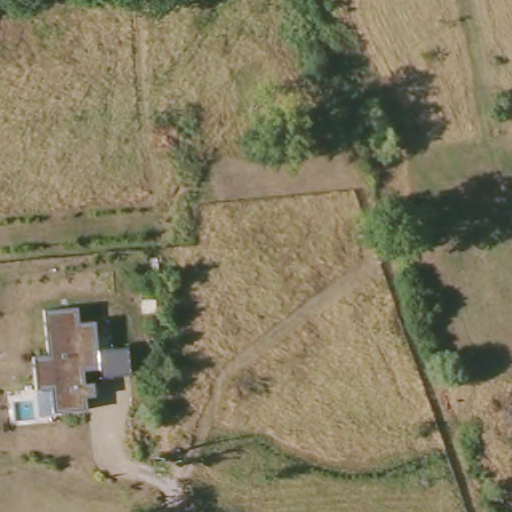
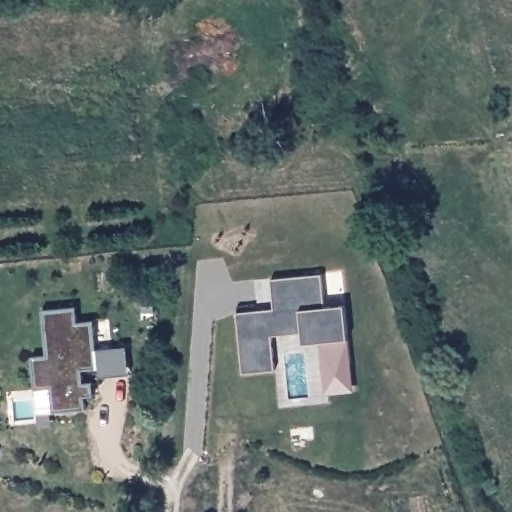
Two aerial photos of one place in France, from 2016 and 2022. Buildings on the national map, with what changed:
new [(331,395),(328,368),(326,345),(310,346),(309,336),(279,339),(282,373),(250,377),(243,315),(280,312),(277,282),(328,277),(331,310),(351,307),(357,366),(359,391),(331,395)]
unchanged [(54,387),(37,388),(35,357),(51,357),(46,311),(78,307),(80,324),(94,323),(98,350),(128,347),(131,375),(103,377),(102,367),(85,368),(85,384),(95,383),(96,396),(87,397),(88,409),(56,412),(54,387)]

